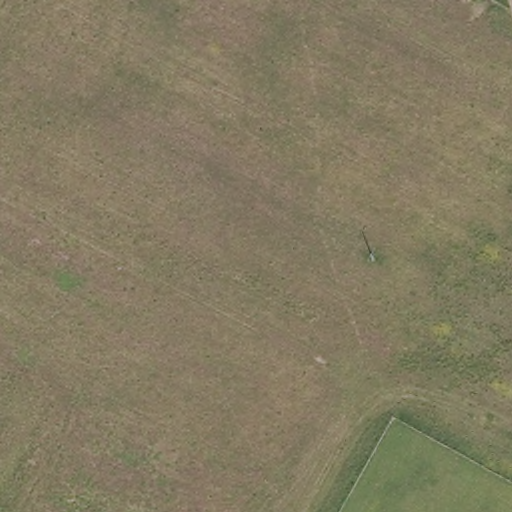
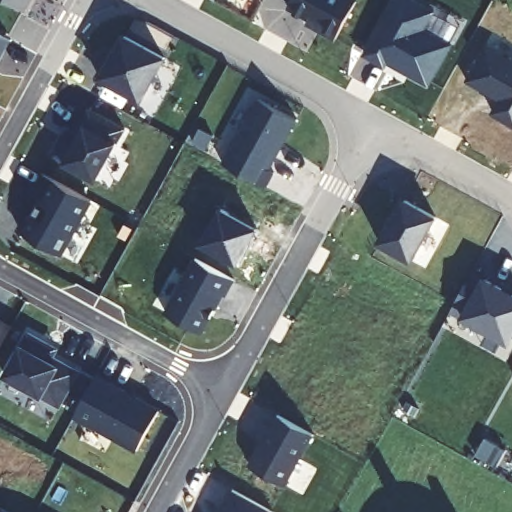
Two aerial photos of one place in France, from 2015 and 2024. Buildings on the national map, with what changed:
new [(22,18),(0,7),(0,0),(32,0),(22,18)]
new [(354,8),(333,46),(317,37),(318,33),(285,14),(294,0),(340,0),(354,8)]
new [(394,0),(411,0),(433,12),(435,8),(463,24),(427,91),(365,55),(394,0)]
new [(306,26),(318,33),(317,37),(304,30),(306,26)]
new [(0,61),(0,32),(12,39),(0,61)]
new [(138,107),(95,84),(107,63),(110,65),(122,43),(162,65),(138,107)]
new [(499,99),(467,81),(487,45),(512,58),(512,125),(490,113),(499,99)]
new [(295,126),(267,177),(272,180),(264,195),(220,171),(255,105),(295,126)]
new [(120,142),(97,182),(64,164),(51,159),(68,126),(76,131),(89,106),(127,126),(120,142)]
new [(62,253),(21,231),(42,193),(37,190),(47,173),(94,200),(62,253)]
new [(406,201),(434,217),(412,259),(382,242),(406,201)]
new [(258,229),(237,267),(199,246),(220,207),(258,229)]
new [(235,280),(228,294),(224,291),(202,331),(165,312),(195,256),(235,280)]
new [(475,269),(512,290),(512,343),(510,345),(452,312),(475,269)]
new [(0,320),(0,314),(2,315),(0,320)]
new [(57,355),(82,371),(62,407),(42,396),(4,374),(20,344),(29,328),(62,346),(57,355)]
new [(162,406),(137,450),(75,414),(100,372),(162,406)]
new [(315,433),(288,484),(251,465),(279,413),(315,433)]
new [(275,512),(220,512),(233,488),(275,511),(275,512)]
new [(9,512),(0,512),(0,506),(10,511),(9,512)]

